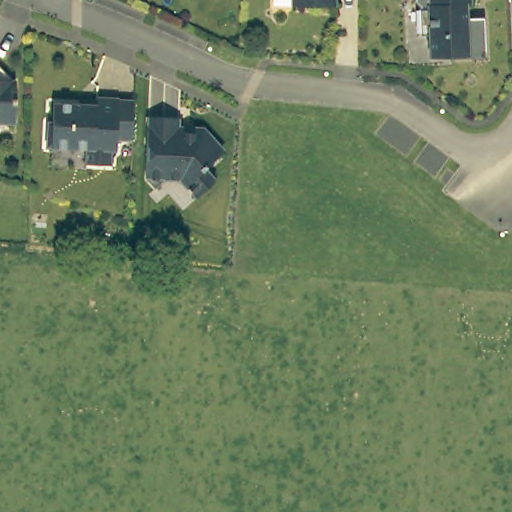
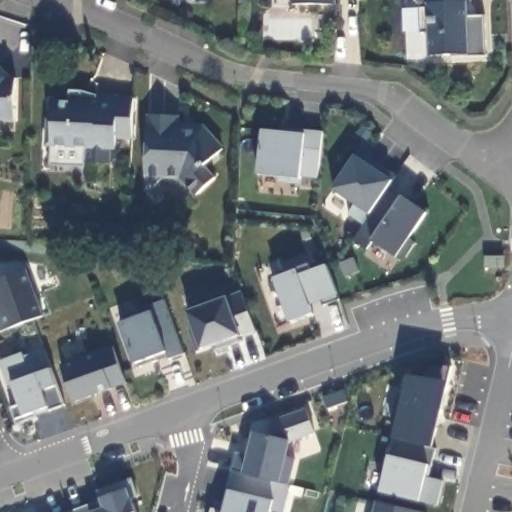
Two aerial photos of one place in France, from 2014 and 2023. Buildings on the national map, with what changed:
unchanged [(338,5),(296,3),(296,0),(338,0),(338,5)]
unchanged [(490,59),(454,59),(454,57),(432,57),(432,34),(423,35),(423,6),(417,2),(417,0),(474,0),(474,5),(470,5),(470,18),(488,17),(490,59)]
unchanged [(17,79),(20,79),(19,122),(0,122),(0,69),(4,65),(17,79)]
unchanged [(111,144),(111,159),(86,159),(86,144),(46,143),(47,117),(52,117),(52,98),(79,99),(79,94),(95,94),(95,91),(117,92),(116,144),(111,144)]
unchanged [(134,92),(132,139),(116,139),(117,92),(134,92)]
unchanged [(155,187),(145,178),(147,115),(178,116),(177,129),(194,130),(194,127),(202,127),(222,148),(205,166),(216,177),(197,195),(181,178),(165,178),(155,187)]
new [(268,130),(295,132),(295,128),(329,132),(325,178),(307,176),(307,184),(263,179),(268,130)]
new [(366,150),(402,175),(393,189),(370,224),(356,214),(362,203),(340,188),(366,150)]
new [(370,224),(393,189),(407,198),(409,195),(416,200),(418,197),(436,209),(416,238),(422,242),(413,256),(406,258),(380,240),(374,249),(360,239),(370,224)]
new [(320,315),(298,323),(287,293),(285,294),(278,278),(292,274),(288,264),(317,253),(321,263),(332,259),(337,276),(347,299),(330,305),(328,299),(316,304),(320,315)]
new [(0,333),(0,280),(27,271),(43,316),(0,333)]
new [(216,303),(214,299),(231,292),(232,297),(247,291),(262,331),(247,337),(249,340),(231,347),(229,342),(204,351),(195,329),(200,328),(194,311),(216,303)]
new [(143,368),(127,322),(147,315),(145,309),(171,299),(191,353),(175,359),(174,357),(164,361),(143,368)]
new [(119,347),(132,383),(81,402),(67,365),(119,347)]
new [(57,386),(64,406),(17,424),(12,408),(20,404),(12,384),(8,386),(0,365),(0,362),(22,353),(24,356),(44,350),(52,369),(57,386)]
new [(390,456),(393,438),(400,416),(394,415),(400,396),(403,395),(408,374),(423,377),(426,369),(440,366),(451,368),(450,381),(431,447),(428,466),(427,476),(443,482),(438,506),(421,501),(380,492),(390,456)]
new [(242,452),(256,455),(261,433),(276,436),(280,422),(312,410),(321,432),(296,441),(292,457),(302,459),(295,485),(286,483),(237,472),(242,452)]
new [(436,466),(439,467),(436,478),(432,477),(436,466)]
new [(231,501),(237,472),(286,483),(284,492),(295,495),(291,512),(282,512),(278,511),(278,512),(231,512),(233,501),(231,501)]
new [(101,511),(110,508),(104,492),(137,480),(143,497),(137,499),(142,512),(76,512),(99,504),(101,511)]
new [(419,512),(374,512),(377,501),(419,512)]
new [(231,512),(218,512),(219,509),(231,512)]

